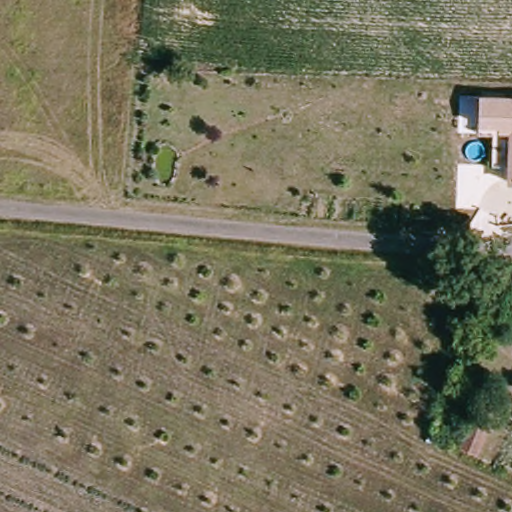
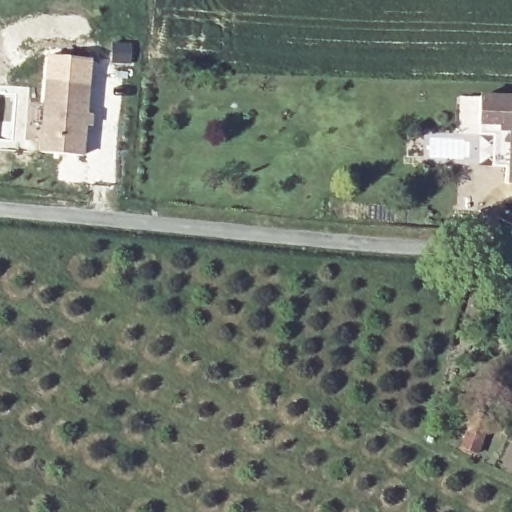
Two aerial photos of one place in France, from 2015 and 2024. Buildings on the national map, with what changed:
new [(45,80),(90,84),(85,155),(40,152),(45,80)]
unchanged [(512,186),(509,186),(510,167),(495,167),(494,134),(480,134),(480,125),(480,94),(512,95),(512,186)]

